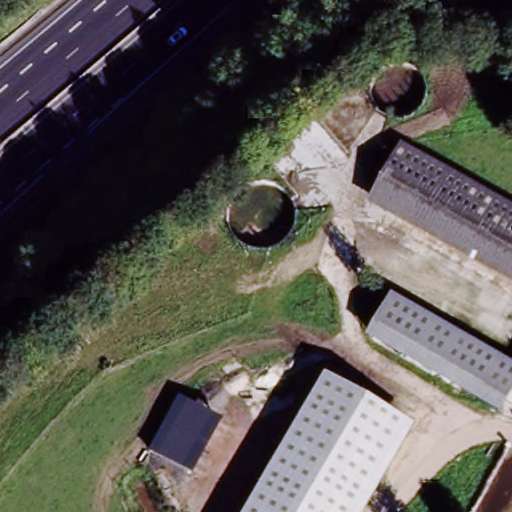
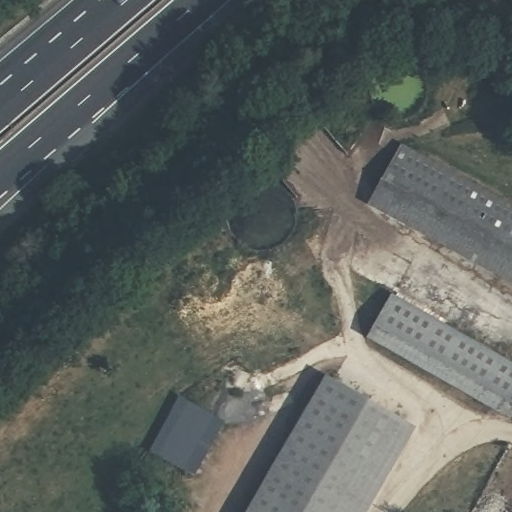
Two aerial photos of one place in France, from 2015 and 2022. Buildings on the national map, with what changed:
unchanged [(397,226),(367,212),(393,159),(440,180),(512,213),(512,282),(397,226)]
unchanged [(512,365),(512,396),(501,417),(365,338),(391,296),(512,365)]
unchanged [(367,512),(245,512),(325,376),(415,427),(367,512)]
unchanged [(196,473),(151,450),(180,397),(225,420),(196,473)]

